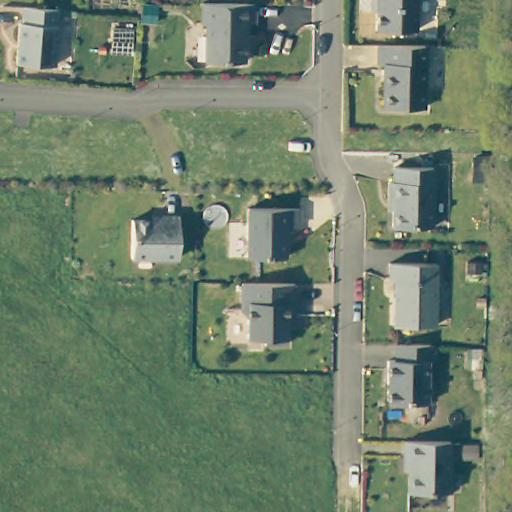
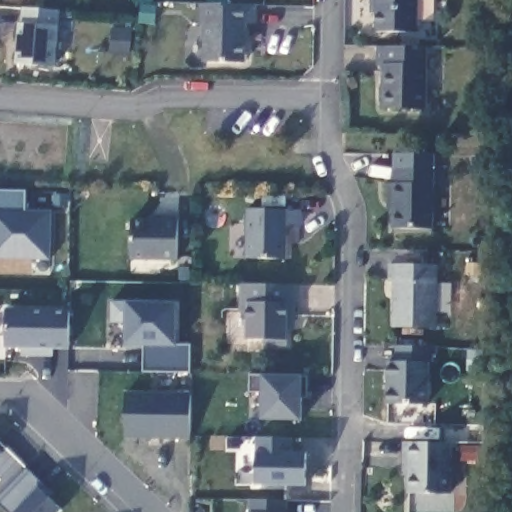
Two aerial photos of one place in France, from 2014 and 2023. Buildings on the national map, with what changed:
unchanged [(417,31),(377,30),(377,0),(417,0),(417,31)]
unchanged [(254,23),(244,23),(244,62),(205,61),(205,22),(201,22),(202,3),(254,4),(254,23)]
unchanged [(54,66),(16,63),(20,23),(22,23),(23,7),(58,10),(54,66)]
unchanged [(424,108),(384,107),(385,64),(378,64),(379,45),(417,46),(425,46),(424,108)]
unchanged [(433,227),(393,226),(394,199),(389,199),(389,181),(394,181),(394,166),(434,167),(433,227)]
new [(0,189),(26,191),(26,209),(52,209),(51,258),(0,258),(0,189)]
unchanged [(284,257),(246,257),(247,208),(298,209),(298,226),(285,226),(284,257)]
unchanged [(177,258),(131,257),(131,219),(162,220),(162,216),(178,217),(177,258)]
unchanged [(435,326),(394,326),(394,298),(396,298),(396,281),(390,280),(390,263),(436,264),(435,326)]
unchanged [(294,319),(287,319),(287,344),(265,343),(265,338),(247,338),(247,318),(241,318),(242,283),(295,284),(294,319)]
new [(143,370),(142,345),(126,345),(126,322),(111,322),(112,301),(129,301),(178,302),(179,344),(190,344),(190,371),(143,370)]
new [(69,348),(5,348),(7,308),(70,309),(69,348)]
unchanged [(428,403),(388,403),(388,360),(396,360),(396,344),(431,345),(431,362),(428,362),(428,403)]
new [(308,375),(308,397),(302,397),(302,421),(262,419),(263,392),(250,391),(251,373),(308,375)]
new [(190,439),(125,437),(127,390),(191,391),(190,439)]
new [(257,437),(292,437),(289,451),(306,451),(306,485),(258,484),(257,437)]
new [(9,512),(0,505),(0,440),(25,467),(43,483),(39,487),(62,508),(59,512),(9,512)]
unchanged [(405,441),(450,442),(450,492),(409,492),(409,458),(404,458),(404,441),(405,441)]
new [(288,498),(289,512),(249,512),(249,498),(288,498)]

